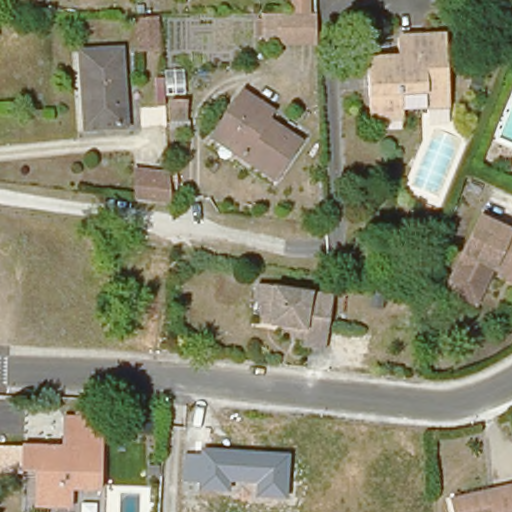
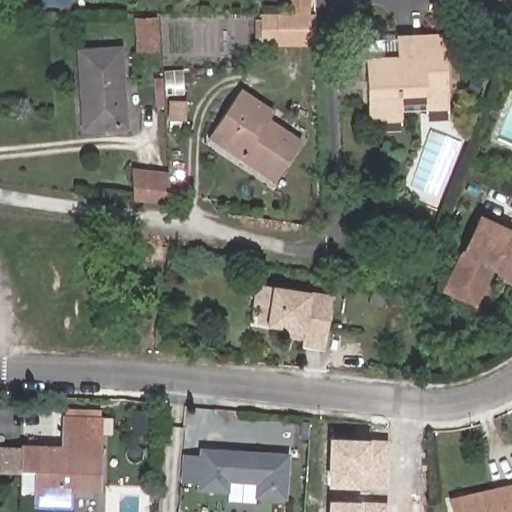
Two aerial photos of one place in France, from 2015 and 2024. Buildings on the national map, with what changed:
unchanged [(277,13),(288,13),(288,0),(307,0),(307,13),(317,13),(318,41),(277,41),(277,13)]
unchanged [(138,49),(137,20),(162,19),(163,49),(138,49)]
unchanged [(372,117),(372,108),(369,59),(400,58),(398,36),(421,36),(422,46),(442,45),(445,99),(446,105),(428,107),(427,99),(427,93),(398,94),(400,106),(400,116),(372,117)]
unchanged [(83,46),(120,44),(125,120),(87,123),(83,46)]
unchanged [(212,136),(244,92),(272,110),(267,119),(300,141),(275,179),(212,136)]
unchanged [(167,131),(167,98),(189,97),(187,131),(167,131)]
unchanged [(135,164),(166,167),(168,199),(169,207),(137,203),(136,195),(135,164)]
unchanged [(494,270),(462,254),(480,217),(512,231),(512,279),(494,270)]
unchanged [(462,254),(494,270),(475,308),(443,293),(462,254)]
unchanged [(323,349),(301,345),(303,339),(278,336),(279,328),(265,325),(266,320),(250,318),(255,281),(270,284),(315,290),(334,294),(323,349)]
unchanged [(30,457),(17,457),(19,429),(52,431),(52,439),(60,439),(61,419),(98,421),(96,477),(87,477),(87,494),(29,492),(30,457)]
new [(366,439),(368,438),(388,439),(386,486),(360,483),(361,488),(329,486),(331,439),(366,439)]
unchanged [(287,502),(255,499),(256,484),(230,483),(229,494),(200,491),(200,483),(182,482),(185,454),(200,454),(201,448),(291,455),(287,502)]
unchanged [(452,502),(512,490),(512,512),(454,512),(452,502)]
new [(356,502),(358,500),(387,502),(387,512),(329,512),(330,502),(356,502)]

